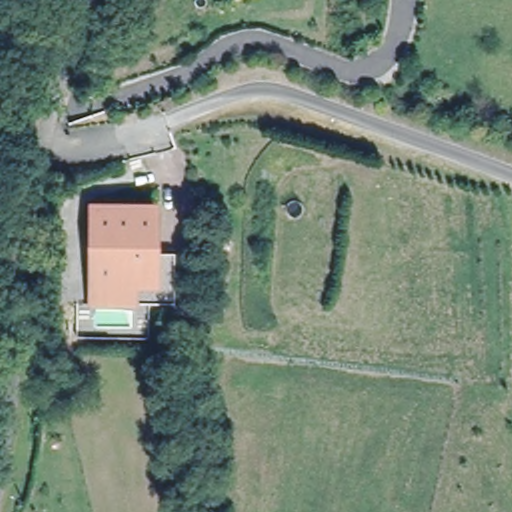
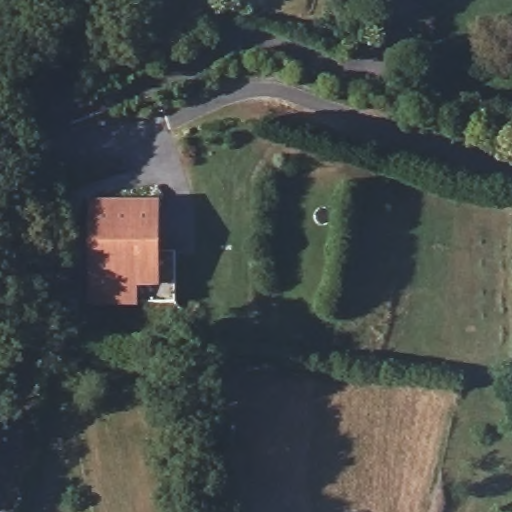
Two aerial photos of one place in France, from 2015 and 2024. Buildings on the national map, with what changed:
unchanged [(146,194),(146,239),(165,239),(165,290),(85,289),(85,193),(146,194)]

